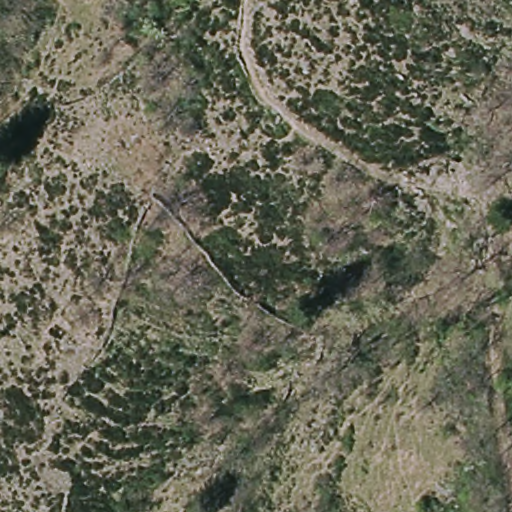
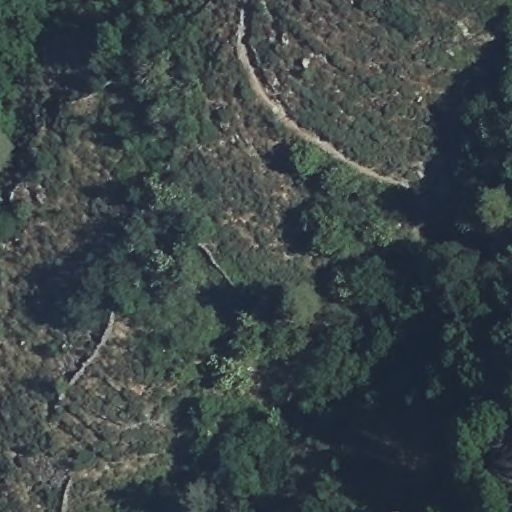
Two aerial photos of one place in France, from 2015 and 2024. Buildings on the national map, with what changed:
[]

